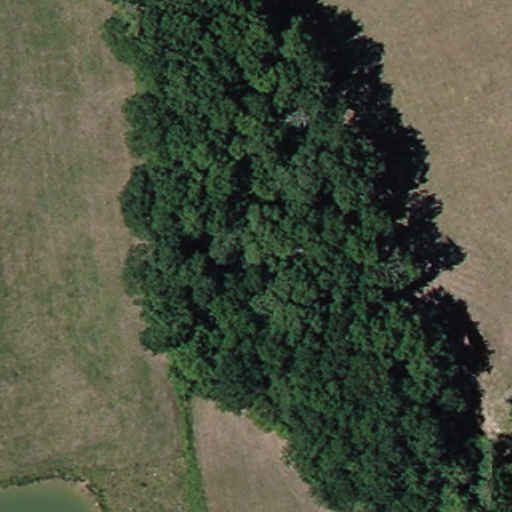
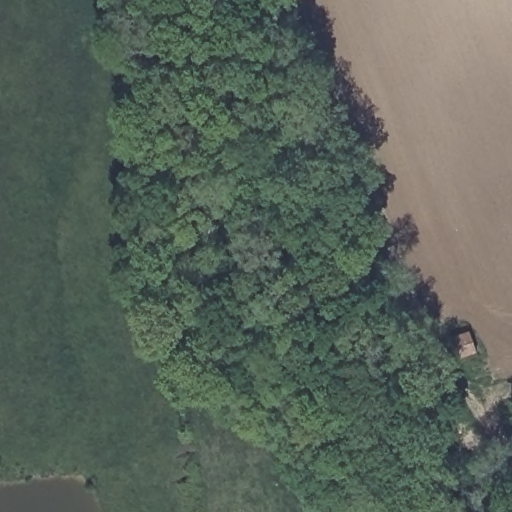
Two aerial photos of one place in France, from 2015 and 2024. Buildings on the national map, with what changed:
unchanged [(459,333),(468,348),(450,360),(442,344),(459,333)]

